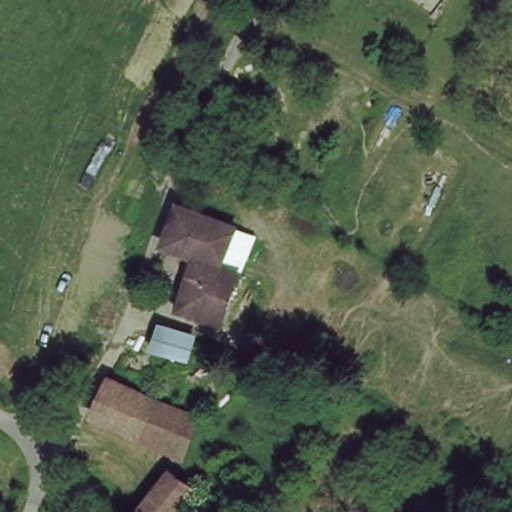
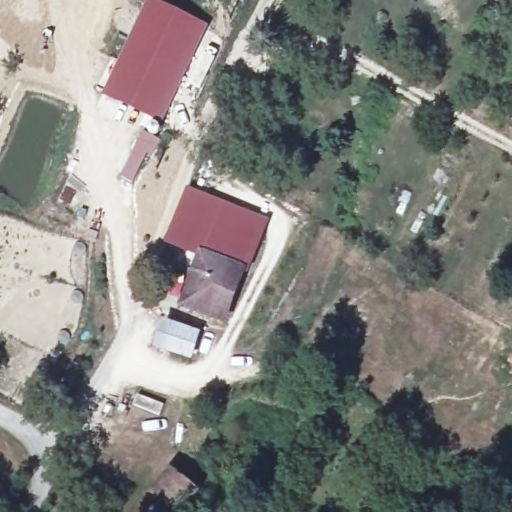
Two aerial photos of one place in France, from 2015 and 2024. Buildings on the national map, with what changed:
new [(164,123),(104,96),(149,0),(154,0),(207,25),(164,123)]
unchanged [(186,201),(187,199),(246,222),(230,263),(247,270),(227,325),(181,309),(198,255),(169,244),(186,201)]
unchanged [(152,316),(189,329),(179,356),(142,343),(152,316)]
demolished [(112,375),(199,410),(184,445),(96,413),(104,393),(112,375)]
unchanged [(166,470),(193,483),(175,512),(139,512),(166,470)]

